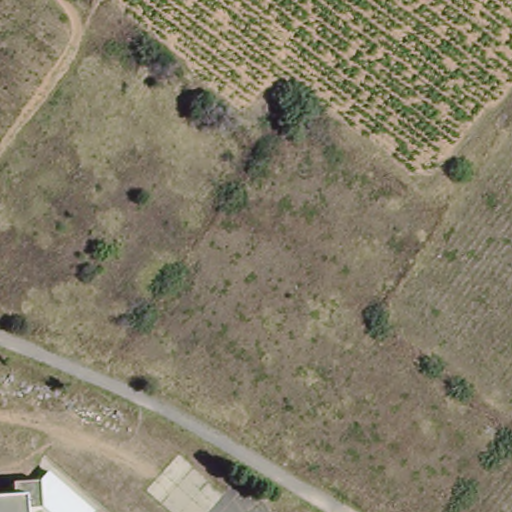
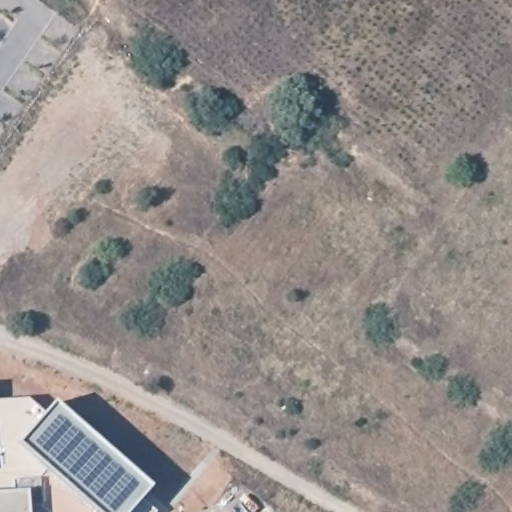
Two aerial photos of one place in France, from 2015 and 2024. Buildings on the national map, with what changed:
new [(30,400),(47,415),(57,403),(155,488),(145,500),(157,512),(86,512),(48,467),(47,493),(19,496),(19,501),(0,503),(0,402),(30,400)]
unchanged [(48,467),(86,512),(48,512),(47,493),(48,467)]
unchanged [(19,501),(19,496),(47,493),(48,512),(0,512),(0,503),(19,501)]

